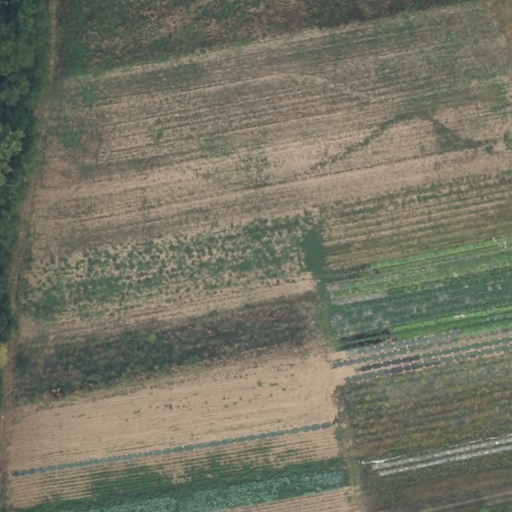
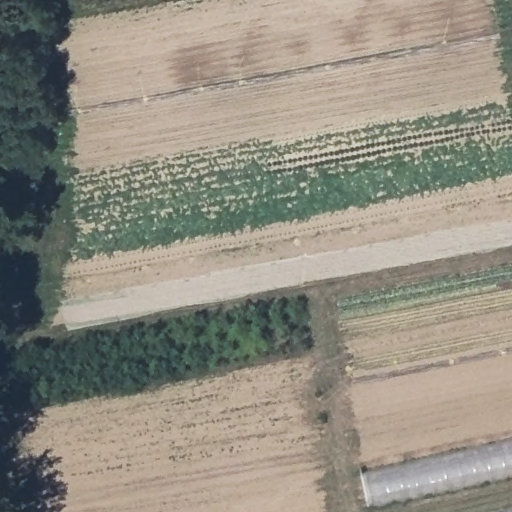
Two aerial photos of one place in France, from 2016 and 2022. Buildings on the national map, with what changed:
new [(512,443),(512,478),(368,507),(361,475),(512,443)]
demolished [(512,512),(495,512),(512,508),(512,512)]

